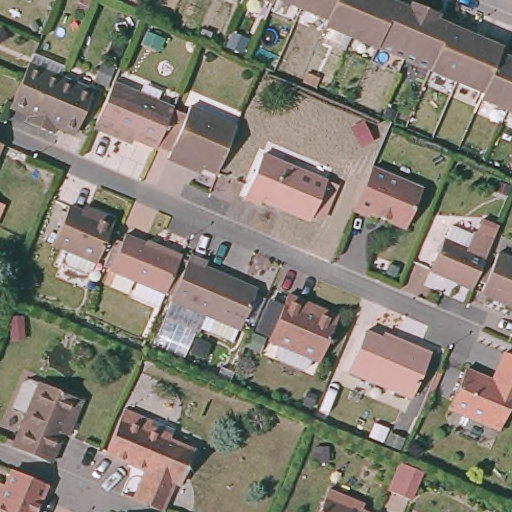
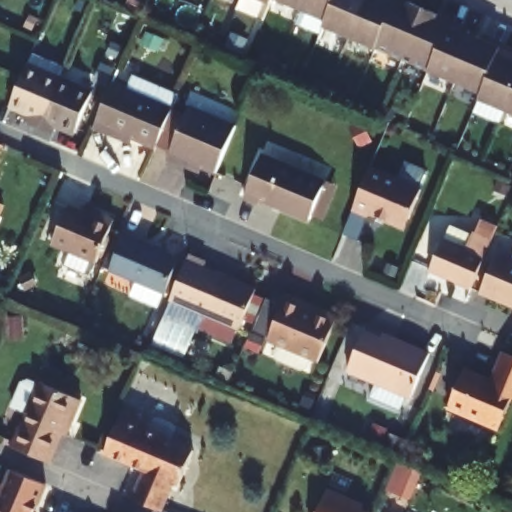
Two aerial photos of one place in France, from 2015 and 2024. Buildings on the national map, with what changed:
unchanged [(276,3),(273,9),(251,0),(277,0),(276,3)]
unchanged [(303,14),(276,3),(277,0),(308,0),(303,14)]
unchanged [(308,0),(339,0),(329,24),(303,14),(308,0)]
unchanged [(326,31),(329,24),(339,0),(370,0),(352,41),(326,31)]
unchanged [(370,0),(382,0),(398,6),(379,50),(379,51),(352,41),(370,0)]
unchanged [(379,50),(398,6),(410,11),(413,5),(427,11),(406,61),(379,50)]
unchanged [(432,72),(406,61),(427,11),(439,16),(437,23),(451,29),(432,72)]
unchanged [(431,74),(432,72),(451,29),(479,40),(459,85),(431,74)]
unchanged [(485,95),(459,85),(479,40),(504,50),(501,58),(485,95)]
unchanged [(482,103),(485,95),(501,58),(512,63),(512,101),(507,114),(482,103)]
unchanged [(22,71),(24,65),(57,80),(36,130),(23,124),(26,115),(7,106),(22,71)]
unchanged [(90,94),(72,135),(55,128),(51,136),(46,134),(36,130),(57,80),(90,94)]
unchanged [(154,151),(110,133),(108,139),(93,132),(113,84),(172,110),(154,151)]
unchanged [(512,101),(512,116),(507,114),(512,101)]
unchanged [(180,169),(166,162),(169,155),(156,150),(168,120),(172,111),(185,116),(189,107),(236,126),(214,176),(183,161),(180,169)]
unchanged [(1,144),(0,146),(0,144),(1,144)]
unchanged [(317,217),(307,212),(305,218),(257,199),(255,202),(238,195),(256,151),(321,177),(332,182),(317,217)]
unchanged [(423,189),(408,227),(371,215),(369,217),(354,211),(372,167),(423,189)]
unchanged [(62,205),(86,216),(88,211),(108,219),(90,262),(45,244),(62,205)]
unchanged [(442,235),(444,236),(449,224),(471,232),(472,229),(492,235),(484,252),(469,287),(428,269),(442,235)]
unchanged [(158,290),(156,290),(151,305),(124,294),(129,280),(95,265),(106,239),(114,241),(118,235),(143,245),(146,242),(173,255),(158,290)]
unchanged [(512,259),(512,305),(479,291),(495,251),(512,259)]
unchanged [(183,254),(200,261),(198,266),(251,288),(234,327),(231,326),(226,340),(194,326),(200,313),(164,297),(183,254)]
unchanged [(298,368),(274,358),(271,352),(274,343),(264,339),(281,298),(298,305),(331,319),(329,323),(315,360),(308,357),(304,366),(298,368)]
unchanged [(407,400),(341,373),(358,334),(392,348),(394,342),(425,355),(407,400)]
unchanged [(512,396),(511,396),(496,432),(444,410),(461,371),(489,382),(501,353),(512,358),(512,396)]
unchanged [(23,415),(9,409),(19,385),(26,382),(35,386),(36,383),(78,401),(70,423),(65,422),(47,465),(14,451),(9,448),(23,415)]
unchanged [(139,477),(144,479),(146,470),(129,463),(122,460),(104,452),(123,409),(151,421),(148,430),(193,448),(178,483),(166,479),(163,487),(168,490),(159,511),(143,505),(130,499),(139,477)]
unchanged [(397,463),(419,473),(408,501),(384,491),(397,463)]
unchanged [(0,512),(0,485),(6,470),(41,485),(29,512),(0,512)]
unchanged [(363,505),(360,512),(317,512),(326,490),(363,505)]

